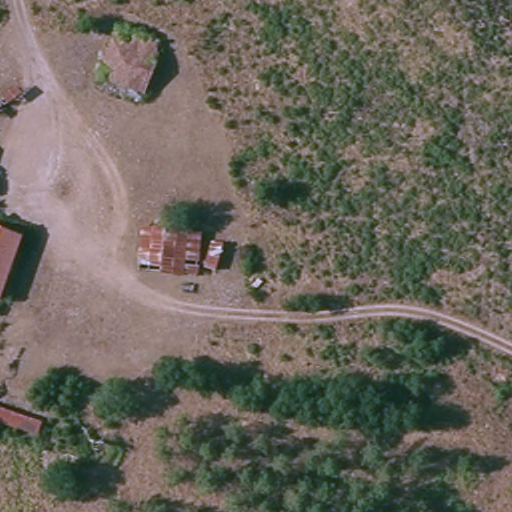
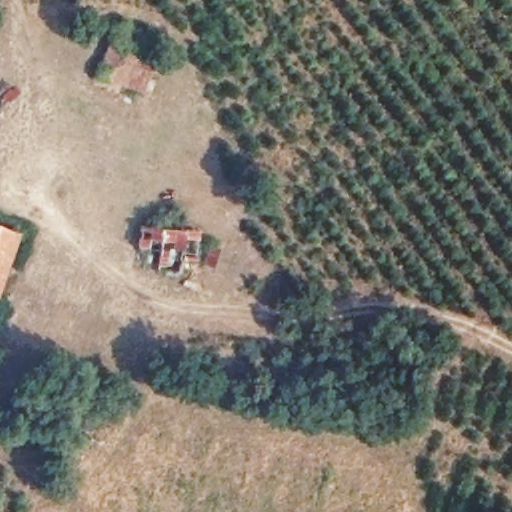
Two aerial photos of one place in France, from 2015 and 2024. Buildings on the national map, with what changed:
unchanged [(140,102),(92,91),(95,76),(83,74),(89,50),(99,52),(103,32),(153,44),(140,102)]
unchanged [(134,230),(199,234),(195,280),(131,276),(134,230)]
unchanged [(0,246),(0,235),(3,236),(0,246)]

